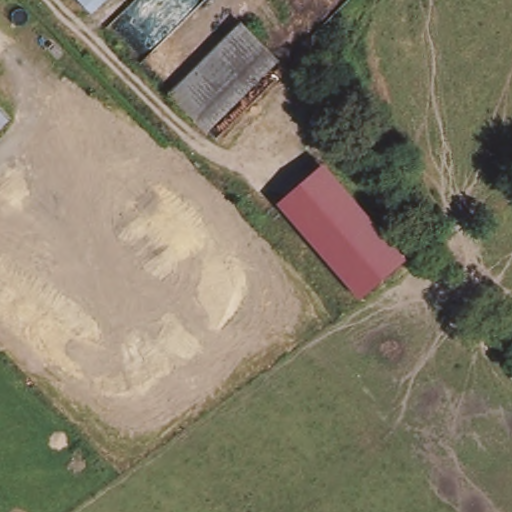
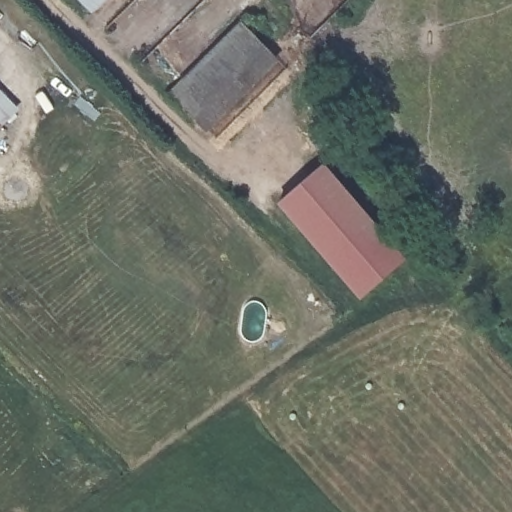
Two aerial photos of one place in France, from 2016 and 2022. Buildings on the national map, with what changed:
unchanged [(94,18),(77,0),(111,0),(94,18)]
unchanged [(212,137),(169,94),(244,21),(284,62),(212,137)]
unchanged [(6,126),(0,130),(0,120),(6,126)]
unchanged [(283,203),(327,163),(408,260),(361,299),(283,203)]

